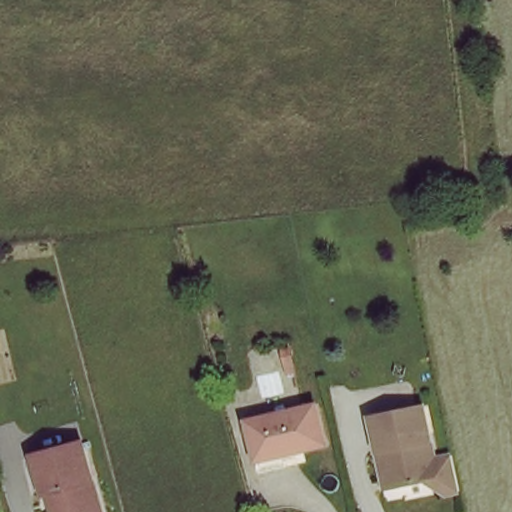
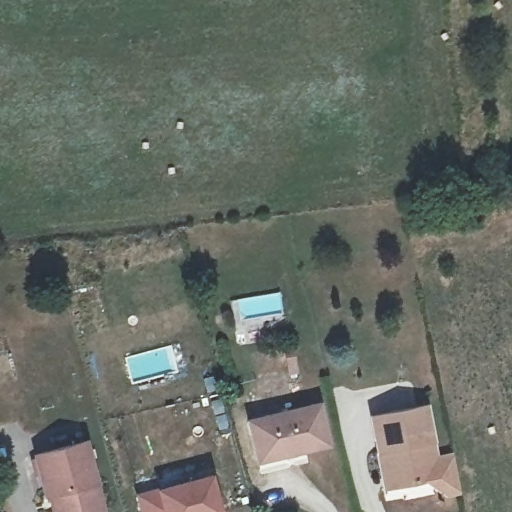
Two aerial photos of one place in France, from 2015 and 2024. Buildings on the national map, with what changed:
unchanged [(257,469),(252,451),(243,417),(313,398),(322,443),(280,453),(282,462),(257,469)]
unchanged [(372,449),(365,416),(417,404),(430,458),(447,454),(456,492),(438,496),(434,477),(390,486),(380,488),(372,449)]
unchanged [(50,501),(47,498),(35,463),(85,449),(105,512),(54,512),(50,501)]
new [(212,479),(221,512),(144,512),(140,499),(212,479)]

